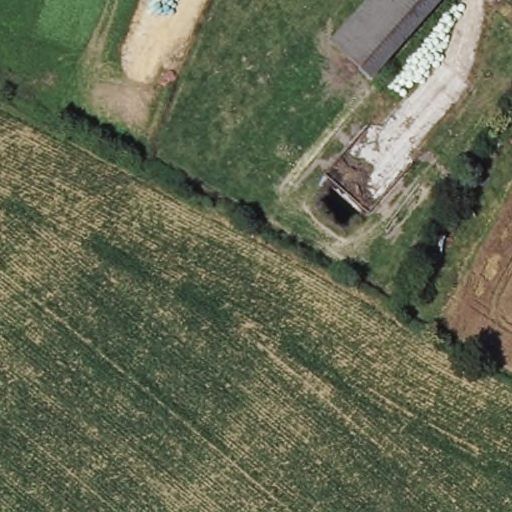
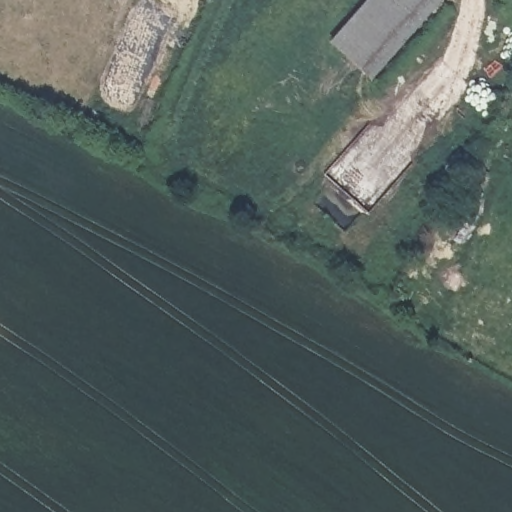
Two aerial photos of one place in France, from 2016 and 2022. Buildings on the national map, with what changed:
unchanged [(359,68),(329,39),(367,0),(423,0),(359,68)]
unchanged [(368,77),(359,68),(423,0),(441,0),(368,77)]

